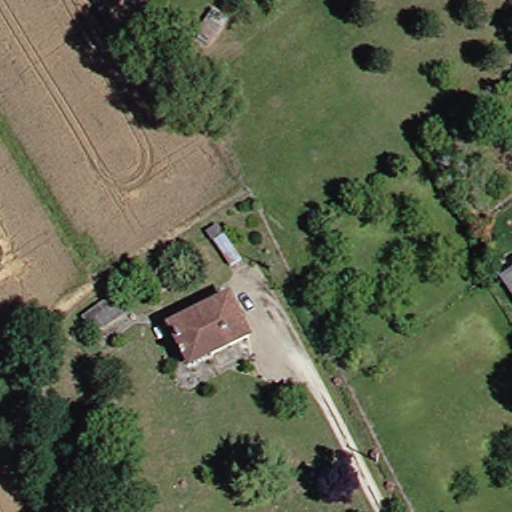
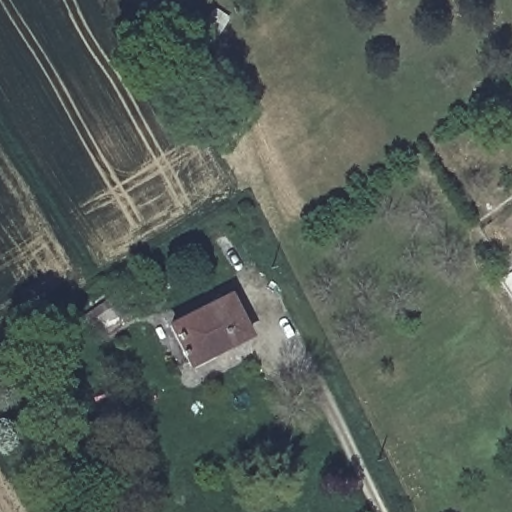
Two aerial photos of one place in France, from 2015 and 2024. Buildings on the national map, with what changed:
unchanged [(501,279),(492,265),(508,256),(512,262),(512,270),(501,279)]
unchanged [(115,323),(108,309),(128,298),(135,311),(115,323)]
unchanged [(194,365),(175,328),(191,319),(233,302),(254,338),(197,366),(194,365)]

